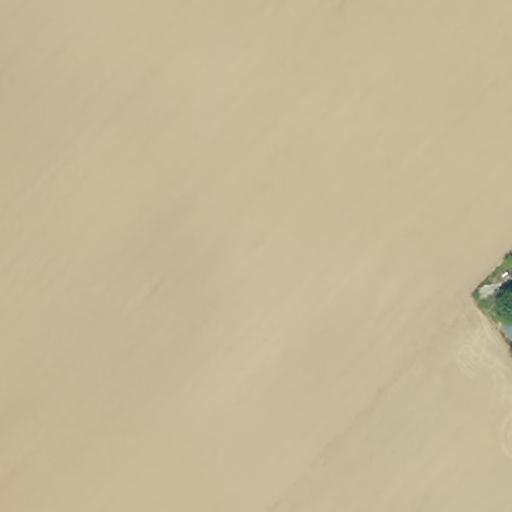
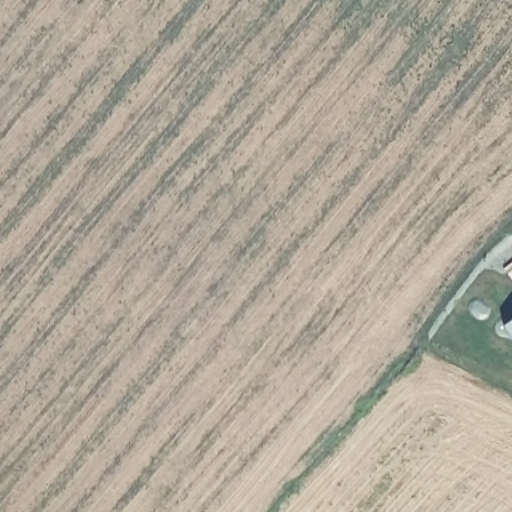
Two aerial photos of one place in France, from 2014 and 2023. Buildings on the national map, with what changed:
unchanged [(512,322),(512,331),(508,325),(512,322)]

